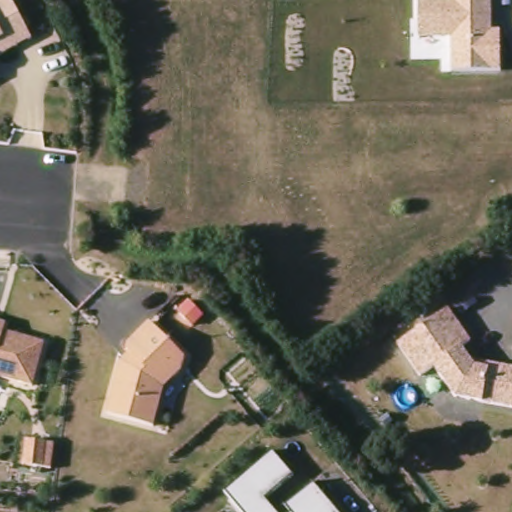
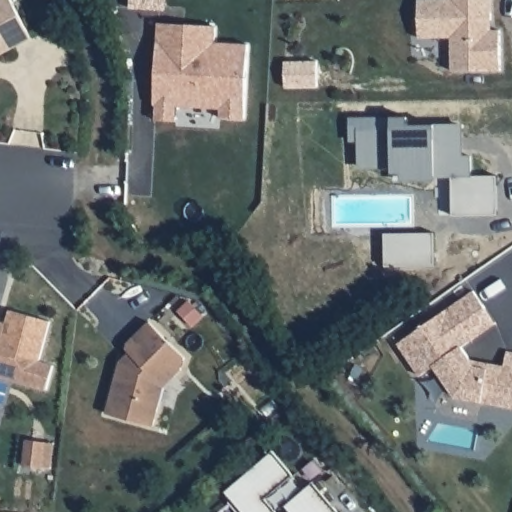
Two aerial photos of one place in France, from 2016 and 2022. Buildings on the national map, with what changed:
unchanged [(34,39),(0,56),(0,0),(13,0),(34,39)]
unchanged [(451,71),(450,37),(418,37),(418,0),(491,0),(492,32),(500,31),(501,70),(451,71)]
new [(222,118),(221,109),(177,106),(177,121),(156,120),(159,23),(216,26),(216,43),(248,45),(246,119),(222,118)]
new [(453,177),(437,179),(402,181),(402,174),(393,174),(393,169),(359,169),(358,142),(350,142),(350,117),(392,117),(408,117),(409,125),(463,124),(463,156),(472,155),(472,177),(496,177),(497,214),(454,214),(453,177)]
new [(385,234),(433,234),(435,265),(386,267),(385,234)]
new [(446,305),(471,288),(493,321),(468,337),(446,305)]
unchanged [(512,364),(512,404),(453,393),(432,362),(418,372),(396,340),(446,305),(468,337),(460,343),(468,356),(486,359),(512,364)]
unchanged [(0,373),(0,318),(5,320),(2,327),(44,338),(32,382),(0,373)]
unchanged [(120,362),(149,322),(187,360),(185,370),(164,387),(157,423),(108,417),(120,362)]
unchanged [(22,461),(26,436),(45,438),(42,463),(22,461)]
unchanged [(272,452),(291,476),(263,500),(274,512),(242,512),(226,493),(272,452)]
unchanged [(312,483),(336,512),(289,512),(284,507),(312,483)]

